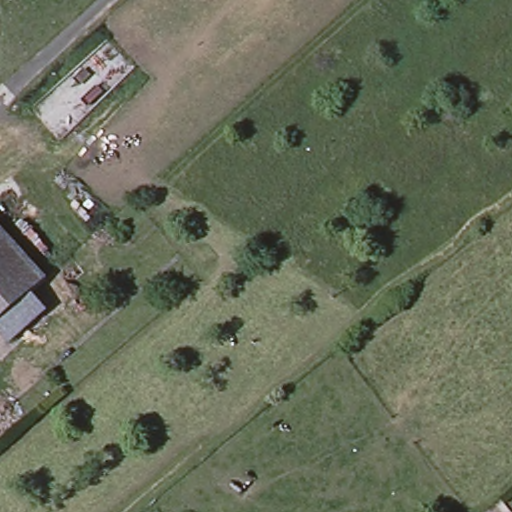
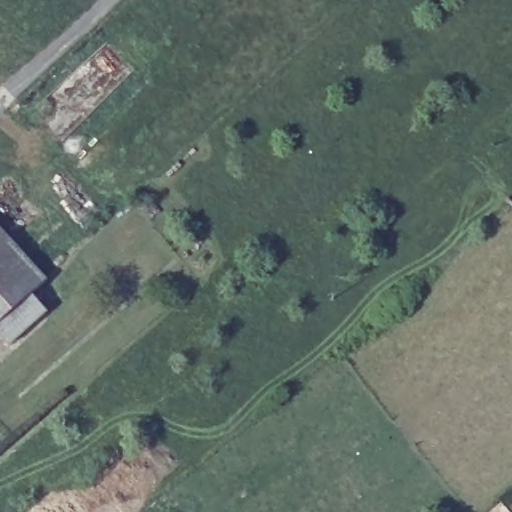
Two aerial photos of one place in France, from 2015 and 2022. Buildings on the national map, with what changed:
unchanged [(0,318),(0,224),(47,276),(32,290),(0,318)]
unchanged [(47,307),(9,341),(0,331),(0,318),(32,290),(47,307)]

